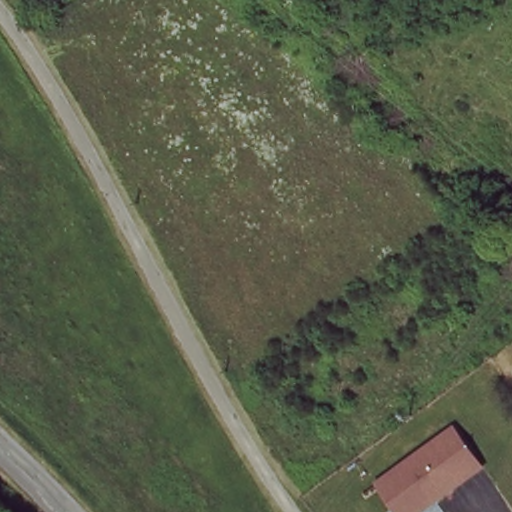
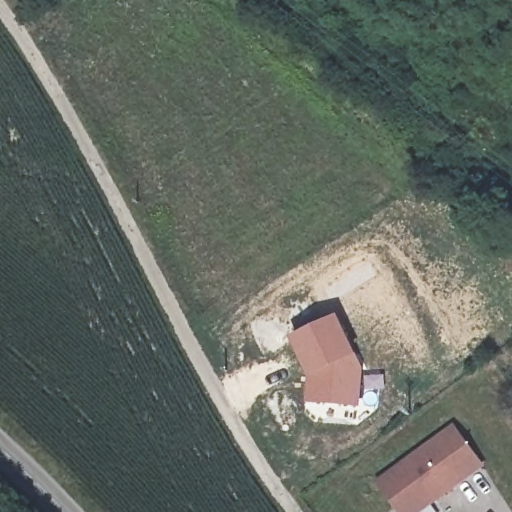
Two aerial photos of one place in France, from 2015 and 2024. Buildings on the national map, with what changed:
new [(334,311),(360,360),(362,367),(359,407),(304,402),(307,375),(289,336),(334,311)]
unchanged [(454,422),(487,466),(425,512),(398,512),(375,481),(454,422)]

